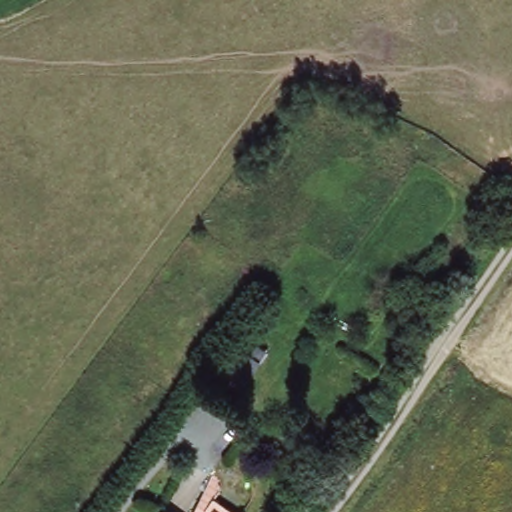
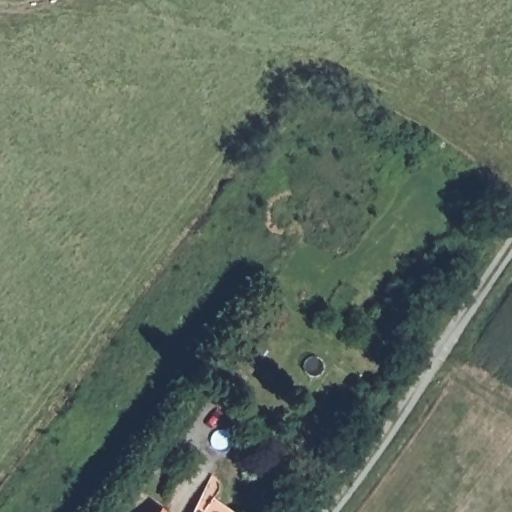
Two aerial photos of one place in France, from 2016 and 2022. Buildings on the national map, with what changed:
unchanged [(209,498),(229,512),(199,512),(209,498)]

